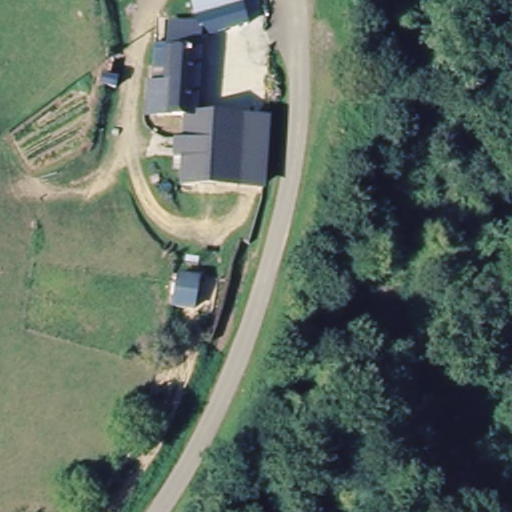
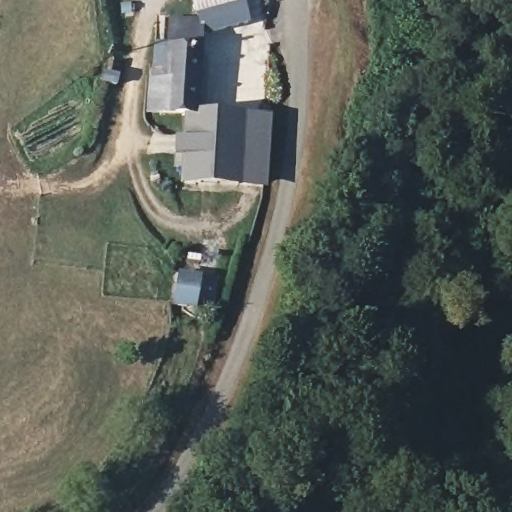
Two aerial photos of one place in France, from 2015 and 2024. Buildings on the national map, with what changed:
unchanged [(245,190),(184,188),(185,118),(145,117),(144,93),(154,93),(155,67),(168,66),(170,19),(199,19),(199,13),(195,0),(243,0),(244,1),(249,26),(199,44),(200,119),(277,120),(274,153),(246,152),(245,190)]
unchanged [(169,307),(178,271),(200,276),(196,309),(169,307)]

